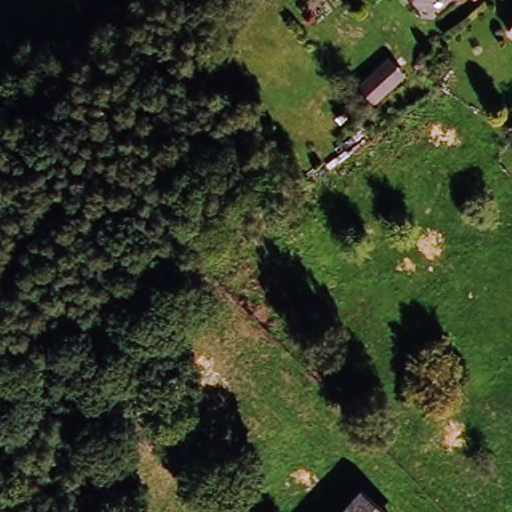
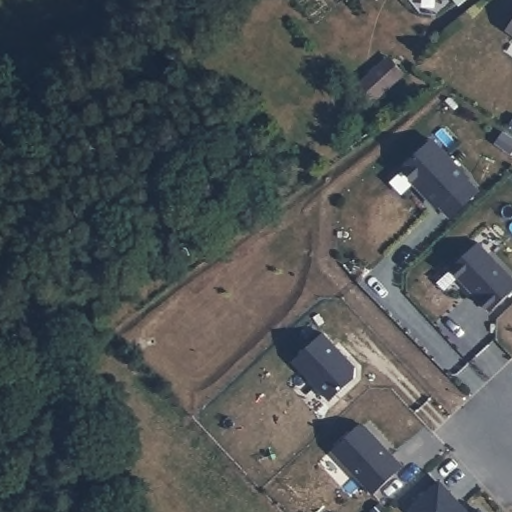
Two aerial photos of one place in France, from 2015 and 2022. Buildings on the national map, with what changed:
unchanged [(452,3),(450,0),(455,0),(452,3)]
unchanged [(512,33),(508,30),(512,26),(512,33)]
unchanged [(382,111),(357,90),(388,60),(410,79),(382,111)]
new [(433,141),(468,178),(467,180),(478,192),(450,218),(439,206),(438,207),(425,193),(426,191),(419,183),(417,184),(403,169),(433,141)]
new [(512,279),(512,292),(491,312),(450,269),(478,243),(512,279)]
new [(322,333),(355,368),(355,377),(331,401),(293,361),(322,333)]
new [(357,426),(365,427),(403,467),(373,495),(332,450),(357,426)]
new [(440,484),(466,512),(411,512),(410,511),(440,484)]
demolished [(336,512),(358,486),(387,512),(336,512)]
new [(480,512),(477,512),(479,511),(480,512)]

